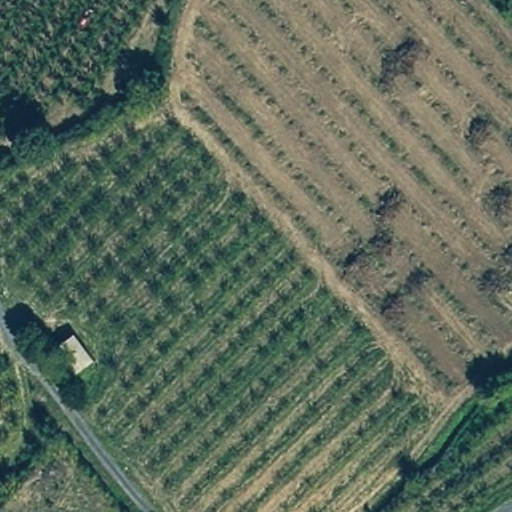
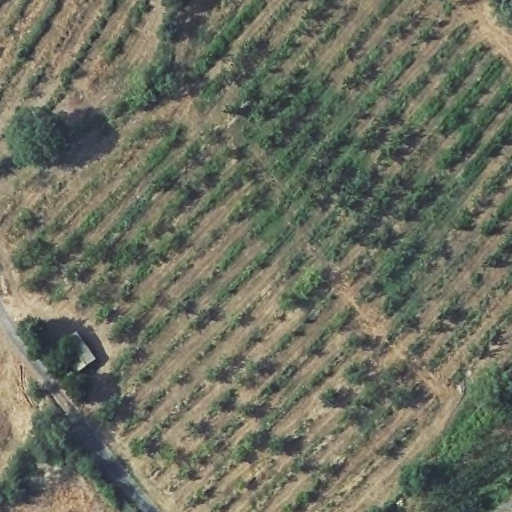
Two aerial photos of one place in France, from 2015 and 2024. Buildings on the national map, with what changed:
unchanged [(71,376),(51,347),(73,334),(93,362),(71,376)]

